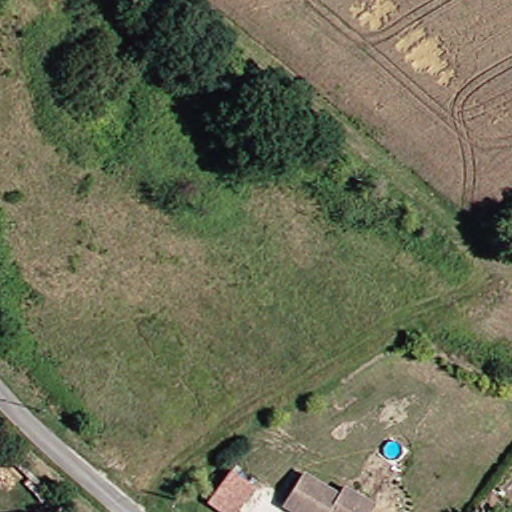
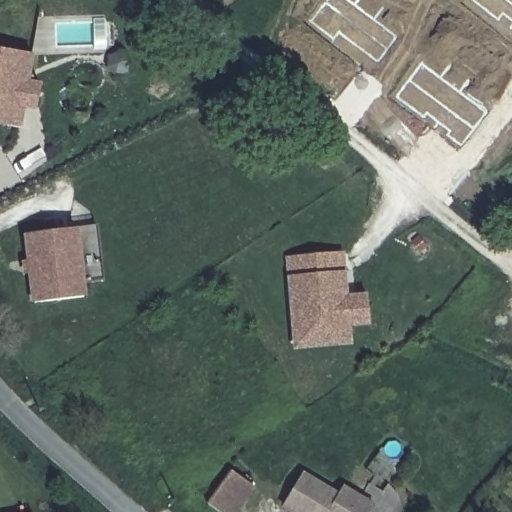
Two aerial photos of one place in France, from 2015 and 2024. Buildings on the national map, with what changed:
new [(374,19),(397,37),(378,62),(340,31),(333,40),(311,21),(327,0),(351,0),(355,3),(356,0),(374,0),(384,8),(374,19)]
new [(512,30),(473,0),(512,0),(512,30)]
new [(22,50),(11,119),(0,117),(0,46),(22,50)]
new [(11,119),(22,50),(33,52),(28,81),(42,83),(39,108),(24,105),(21,126),(0,122),(0,117),(11,119)]
new [(460,92),(487,112),(460,148),(396,96),(422,62),(440,77),(450,65),(468,80),(460,92)]
new [(28,233),(76,228),(85,296),(36,301),(33,273),(25,274),(24,260),(31,259),(28,233)]
new [(373,324),(346,326),(348,342),(300,346),(294,278),(292,258),(340,254),(342,273),(344,300),(370,298),(373,324)]
unchanged [(239,512),(220,512),(207,503),(231,469),(256,487),(239,512)]
unchanged [(339,496),(343,488),(375,506),(372,512),(291,512),(284,508),(302,476),(339,496)]

